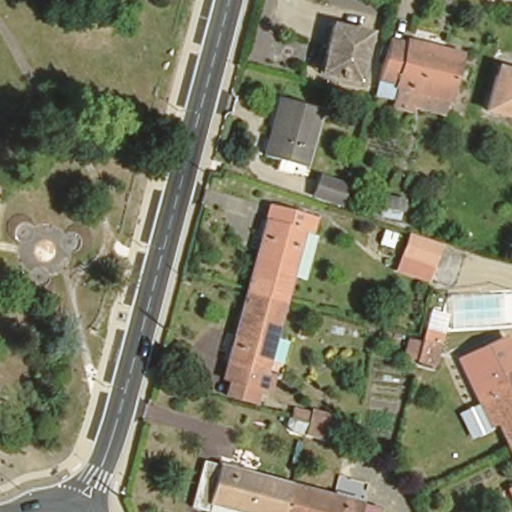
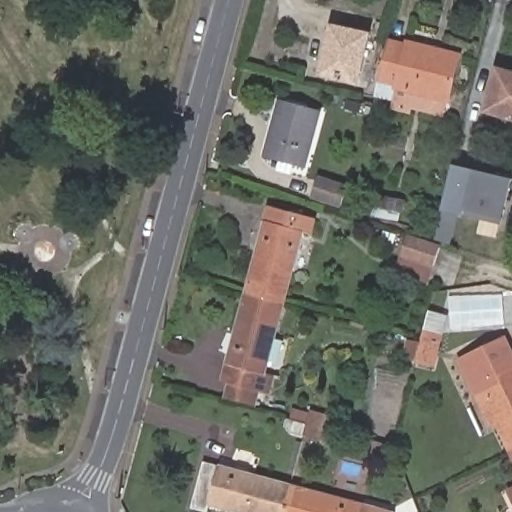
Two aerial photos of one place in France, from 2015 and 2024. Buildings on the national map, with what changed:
unchanged [(368,35),(357,83),(322,74),(332,26),(368,35)]
unchanged [(392,100),(375,95),(388,40),(406,44),(407,41),(460,56),(447,101),(445,114),(392,100)]
unchanged [(512,73),(512,119),(486,112),(498,69),(512,73)]
unchanged [(280,173),(283,159),(266,155),(280,103),(318,114),(306,165),(295,163),(292,175),(280,173)]
new [(500,224),(461,214),(472,168),(512,178),(500,224)]
unchanged [(342,202),(312,192),(317,172),(347,182),(342,202)]
unchanged [(379,191),(408,195),(406,214),(377,210),(379,191)]
unchanged [(246,289),(270,200),(317,214),(312,230),(305,228),(285,299),(246,289)]
unchanged [(501,262),(511,234),(512,234),(512,266),(501,262)]
unchanged [(435,270),(413,264),(405,260),(411,243),(419,245),(440,253),(435,270)]
unchanged [(224,392),(228,376),(224,374),(246,289),(285,299),(266,371),(273,373),(270,388),(260,384),(256,401),(224,392)]
unchanged [(412,357),(417,336),(431,339),(448,344),(442,367),(425,362),(425,360),(412,357)]
unchanged [(497,421),(481,429),(470,408),(481,403),(459,359),(503,337),(512,355),(512,451),(497,421)]
unchanged [(302,439),(296,438),(287,428),(288,422),(291,409),(308,414),(309,412),(331,418),(327,432),(323,444),(302,439)]
unchanged [(210,505),(208,511),(192,507),(205,462),(290,486),(283,512),(235,512),(210,505)]
unchanged [(290,486),(377,511),(377,512),(283,512),(290,486)]
unchanged [(509,489),(512,488),(512,495),(509,489)]

